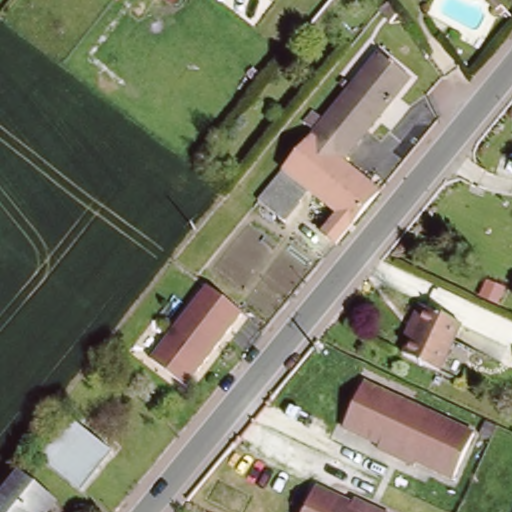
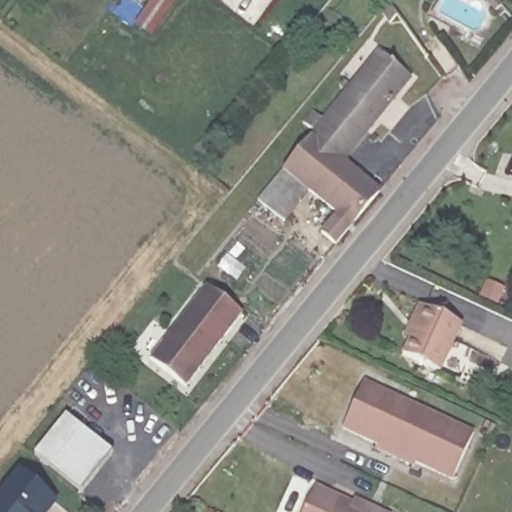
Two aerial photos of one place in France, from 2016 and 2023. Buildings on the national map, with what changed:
unchanged [(397,12),(388,18),(382,8),(391,4),(397,12)]
unchanged [(315,134),(304,125),(312,115),(323,124),(352,89),(377,59),(378,57),(410,83),(340,167),(310,141),(315,134)]
unchanged [(340,167),(378,199),(335,251),(320,239),(337,219),(310,196),(282,174),(310,141),(340,167)]
unchanged [(282,174),(310,196),(285,227),(257,205),(282,174)]
unchanged [(240,312),(185,387),(148,359),(205,284),(240,312)]
unchanged [(445,374),(410,356),(417,341),(412,339),(427,307),(432,310),(468,327),(445,374)]
unchanged [(373,448),(375,442),(339,425),(360,381),(468,432),(447,476),(410,459),(408,464),(373,448)]
unchanged [(71,419),(115,457),(85,494),(40,457),(71,419)]
unchanged [(42,512),(0,512),(0,499),(20,475),(51,502),(42,512)]
unchanged [(347,501),(350,496),(384,512),(298,512),(312,484),(347,501)]

